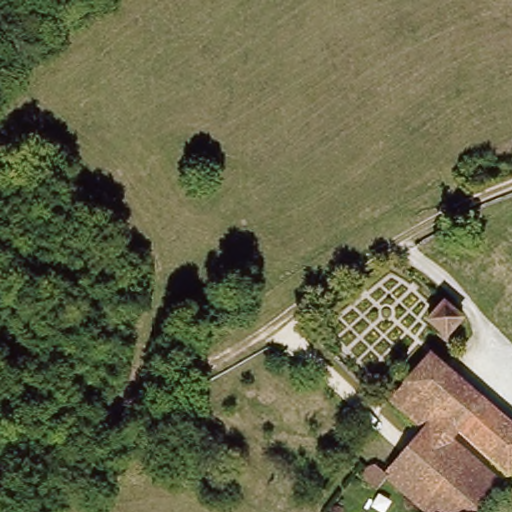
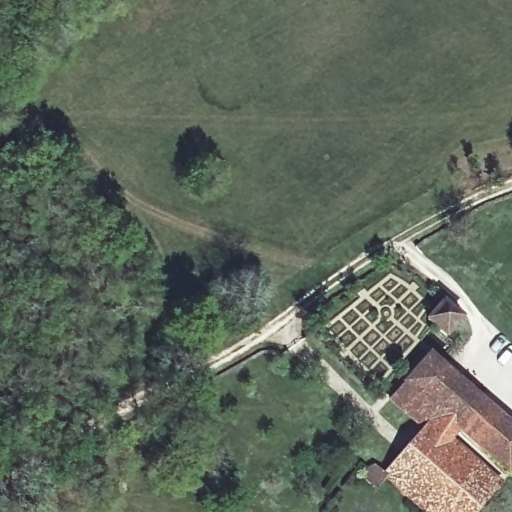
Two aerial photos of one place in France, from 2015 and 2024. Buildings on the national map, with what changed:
unchanged [(429,321),(444,300),(462,315),(443,333),(438,329),(429,321)]
unchanged [(424,427),(393,401),(432,355),(512,422),(512,468),(466,430),(458,438),(503,478),(473,512),(431,512),(387,470),(424,427)]

